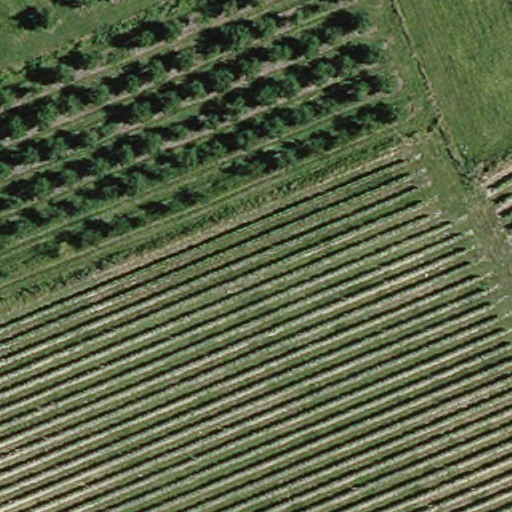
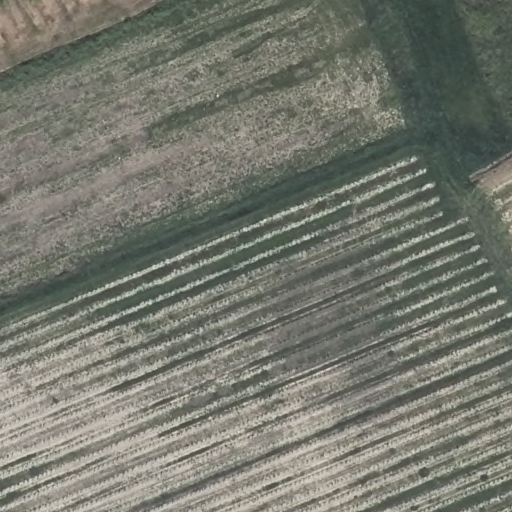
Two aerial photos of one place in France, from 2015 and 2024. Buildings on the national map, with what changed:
[]

